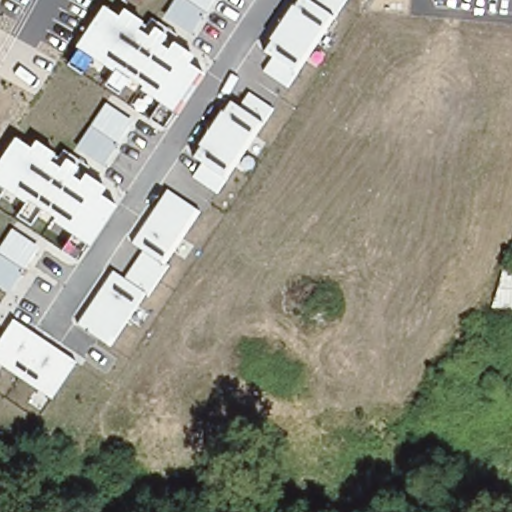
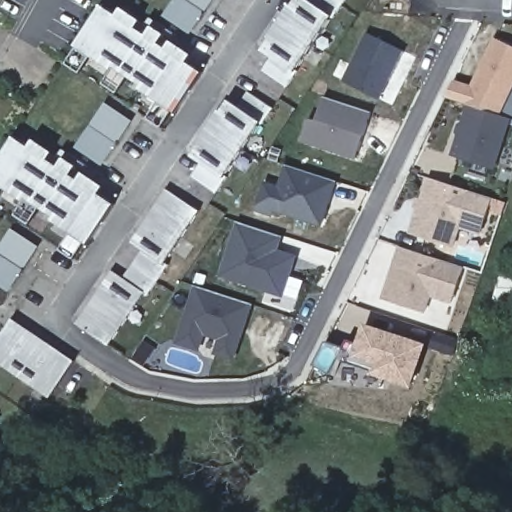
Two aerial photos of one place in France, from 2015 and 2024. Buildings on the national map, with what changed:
unchanged [(192,36),(162,16),(173,0),(215,0),(192,36)]
unchanged [(262,50),(296,0),(308,0),(310,2),(311,0),(344,0),(332,16),(295,72),(286,85),(262,70),(271,56),(262,50)]
unchanged [(175,110),(76,47),(103,6),(122,19),(125,10),(191,53),(186,61),(201,71),(175,110)]
new [(363,34),(401,52),(387,82),(385,82),(376,100),(340,81),(363,34)]
new [(512,49),(512,82),(496,116),(442,97),(450,83),(469,90),(493,40),(512,49)]
unchanged [(224,178),(216,192),(191,177),(200,162),(192,157),(228,100),(238,107),(248,92),(271,107),(261,122),(224,178)]
new [(368,112),(352,159),(297,140),(305,118),(313,120),(321,96),(368,112)]
unchanged [(104,166),(75,147),(105,102),(135,121),(104,166)]
new [(507,120),(489,172),(447,159),(466,106),(507,120)]
unchanged [(89,242),(0,183),(0,155),(12,137),(29,147),(34,141),(103,187),(101,195),(112,205),(89,242)]
new [(263,182),(275,187),(282,164),(332,181),(317,226),(271,210),(269,215),(254,210),(263,182)]
new [(487,199),(476,233),(455,226),(447,248),(405,234),(425,178),(487,199)]
unchanged [(114,272),(126,278),(145,251),(132,244),(167,189),(200,211),(165,263),(170,267),(151,295),(146,292),(110,345),(79,323),(114,272)]
new [(278,237),(275,252),(294,257),(282,298),(216,276),(232,222),(278,237)]
unchanged [(0,285),(0,245),(12,226),(41,245),(10,291),(0,285)]
new [(458,268),(446,304),(425,297),(420,313),(377,299),(395,247),(458,268)]
unchanged [(512,268),(512,310),(492,308),(505,267),(512,268)]
new [(246,303),(227,360),(207,352),(210,342),(196,337),(192,347),(172,341),(191,285),(246,303)]
unchanged [(51,397),(0,363),(0,337),(12,320),(75,362),(51,397)]
new [(373,374),(375,368),(352,361),(365,322),(430,343),(415,387),(373,374)]

